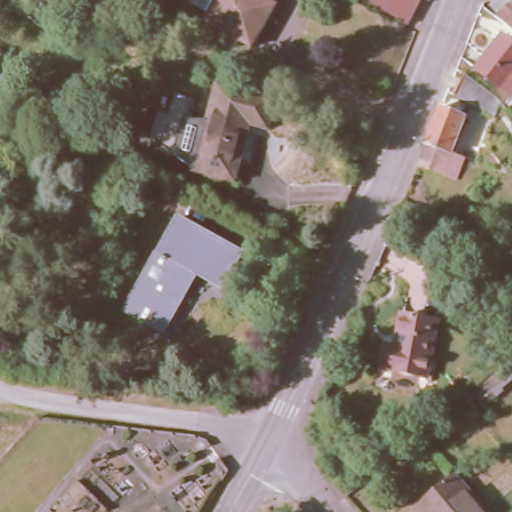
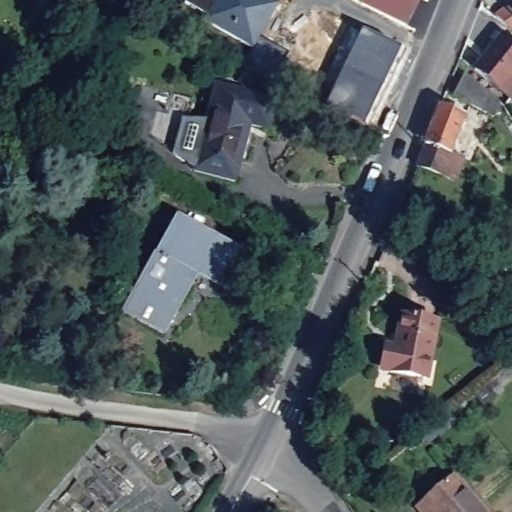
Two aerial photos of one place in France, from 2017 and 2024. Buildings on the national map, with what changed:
unchanged [(54,12),(36,1),(37,0),(60,0),(54,12)]
new [(208,18),(185,4),(187,0),(218,0),(208,18)]
unchanged [(275,6),(251,48),(206,22),(218,0),(265,0),(275,6)]
new [(406,25),(361,2),(361,0),(419,0),(406,25)]
demolished [(411,15),(382,0),(418,0),(411,15)]
unchanged [(512,3),(512,15),(507,7),(512,3)]
unchanged [(474,63),(497,35),(502,28),(509,34),(512,37),(512,90),(510,93),(474,63)]
new [(325,109),(362,34),(400,52),(363,129),(325,109)]
unchanged [(494,112),(453,90),(464,69),(497,94),(500,99),(494,112)]
unchanged [(275,96),(267,125),(249,120),(233,177),(193,166),(216,80),(275,96)]
unchanged [(465,112),(450,149),(463,154),(455,175),(417,160),(439,102),(465,112)]
unchanged [(244,255),(225,289),(196,272),(162,333),(123,312),(176,217),(244,255)]
unchanged [(385,346),(389,347),(395,348),(401,315),(438,321),(427,378),(385,370),(380,369),(385,346)]
unchanged [(498,394),(483,406),(476,396),(491,385),(498,394)]
unchanged [(457,420),(431,442),(424,433),(450,411),(457,420)]
unchanged [(423,512),(417,505),(454,474),(486,512),(423,512)]

